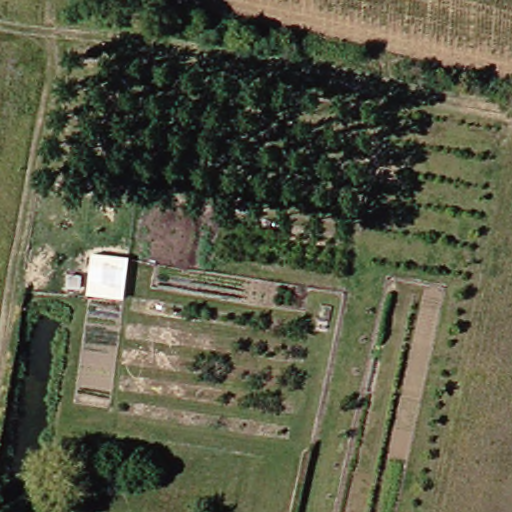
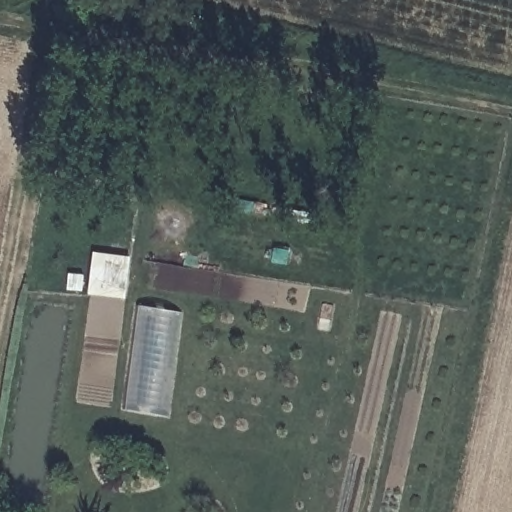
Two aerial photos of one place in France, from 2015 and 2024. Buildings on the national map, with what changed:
new [(89,295),(94,253),(131,258),(125,299),(89,295)]
new [(125,409),(137,308),(182,313),(168,417),(125,409)]

